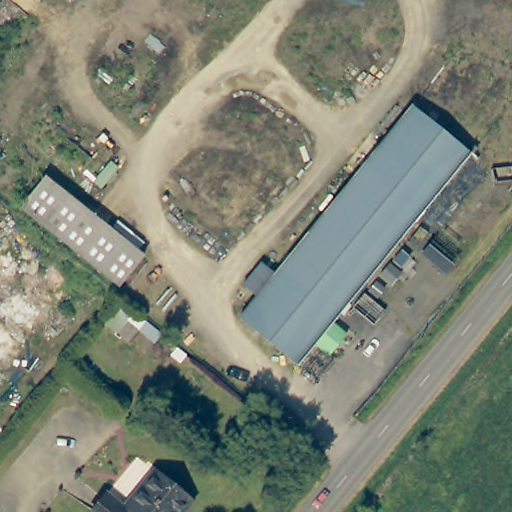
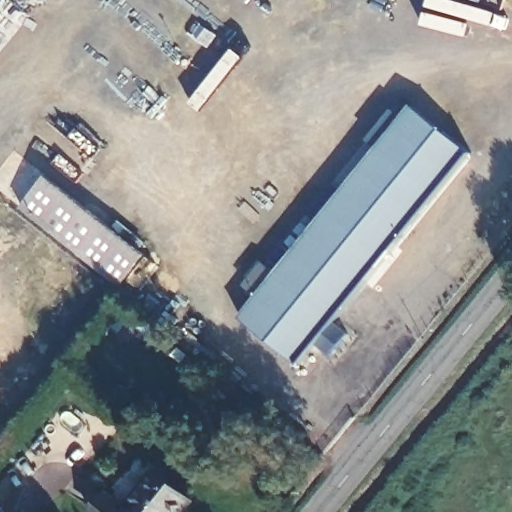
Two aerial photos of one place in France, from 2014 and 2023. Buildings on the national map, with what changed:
unchanged [(234,310),(409,106),(468,155),(296,361),(234,310)]
unchanged [(123,283),(23,207),(46,177),(147,251),(123,283)]
unchanged [(154,469),(194,500),(184,512),(91,512),(108,491),(125,504),(154,469)]

